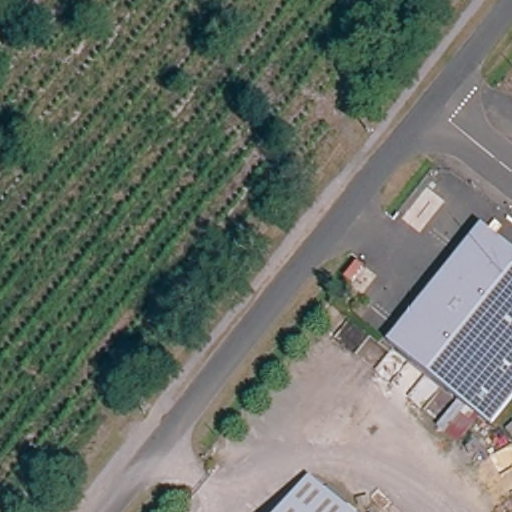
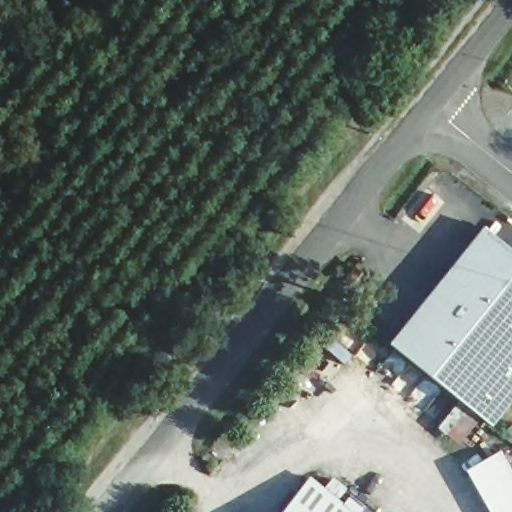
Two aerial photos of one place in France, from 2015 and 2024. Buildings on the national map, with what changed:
unchanged [(481,236),(512,261),(512,405),(489,434),(387,352),(481,236)]
new [(512,470),(512,512),(486,512),(462,469),(499,449),(512,470)]
unchanged [(339,512),(283,512),(305,485),(339,512)]

